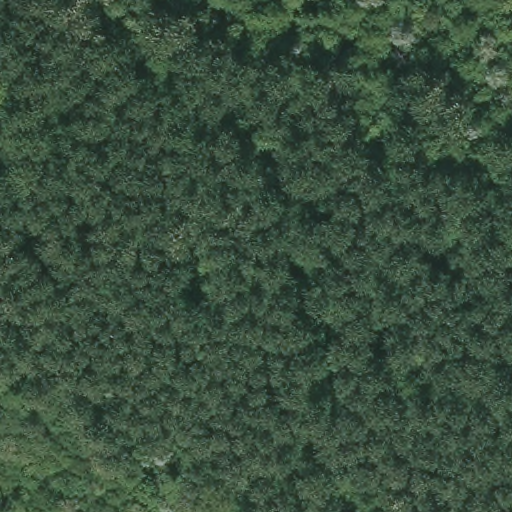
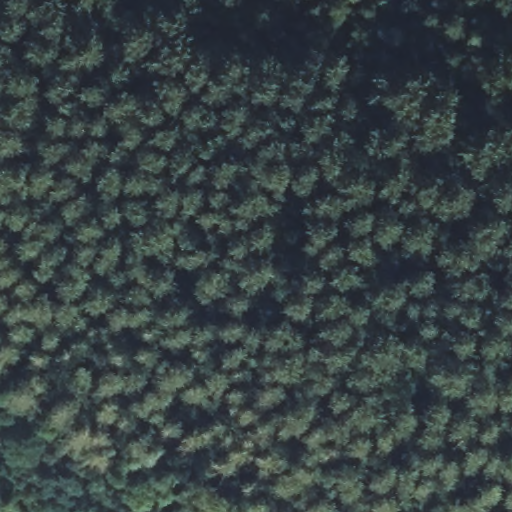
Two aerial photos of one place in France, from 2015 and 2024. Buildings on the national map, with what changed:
[]

